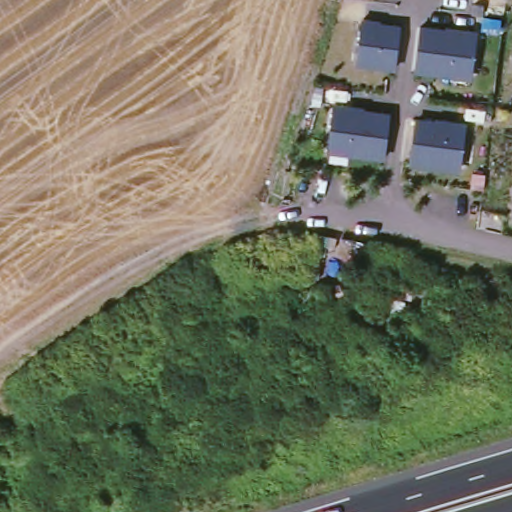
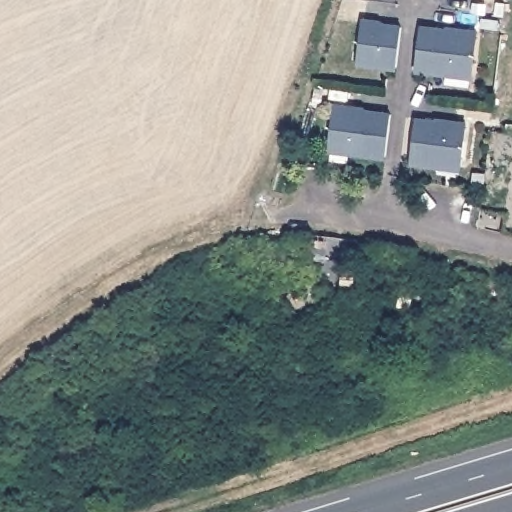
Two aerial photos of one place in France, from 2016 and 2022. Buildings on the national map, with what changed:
unchanged [(397,70),(359,66),(364,22),(403,27),(397,70)]
unchanged [(474,80),(416,73),(423,27),(479,31),(474,80)]
unchanged [(386,160),(331,154),(336,108),(392,115),(386,160)]
unchanged [(463,171),(412,165),(417,117),(469,124),(463,171)]

